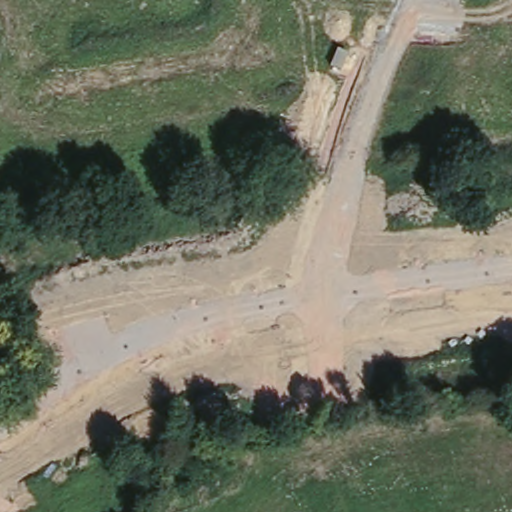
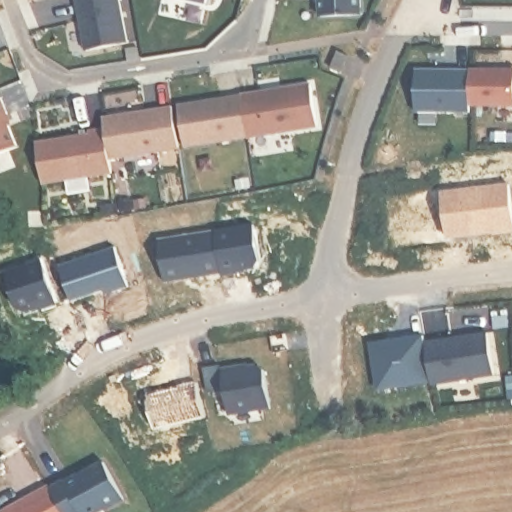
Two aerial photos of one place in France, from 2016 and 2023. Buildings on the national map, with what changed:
new [(126,44),(84,51),(75,0),(118,0),(126,44)]
new [(361,14),(321,16),(319,0),(360,0),(361,14)]
new [(471,107),(472,115),(418,116),(418,72),(470,72),(471,107)]
new [(512,72),(512,107),(471,107),(470,72),(512,72)]
new [(308,86),(315,130),(184,149),(179,106),(308,86)]
new [(4,112),(17,144),(0,151),(0,97),(6,111),(4,112)]
new [(172,107),(179,152),(109,164),(104,131),(102,118),(172,107)]
new [(37,145),(89,136),(88,132),(104,131),(109,164),(111,177),(42,188),(37,145)]
new [(253,227),(259,263),(255,269),(239,271),(240,274),(222,277),(215,232),(253,227)]
new [(214,233),(220,276),(165,284),(161,241),(214,233)]
new [(113,249),(127,288),(104,296),(102,292),(70,302),(59,267),(113,249)]
new [(41,262),(54,305),(37,310),(37,307),(22,312),(15,310),(4,275),(41,262)]
new [(487,336),(494,377),(431,387),(425,345),(487,336)]
new [(239,370),(239,372),(259,370),(263,373),(269,410),(228,417),(221,372),(239,370)]
new [(64,486),(102,465),(122,501),(102,512),(60,512),(49,492),(62,484),(64,486)]
new [(60,512),(11,512),(49,492),(60,512)]

